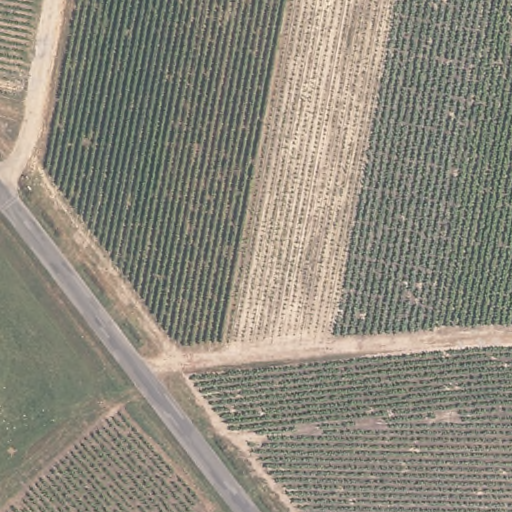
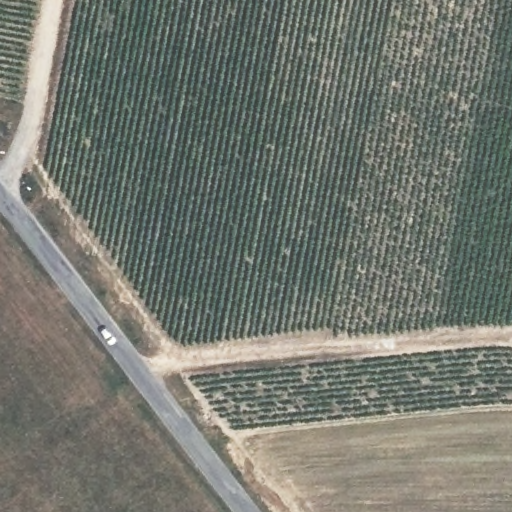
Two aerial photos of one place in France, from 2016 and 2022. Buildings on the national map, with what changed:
[]

